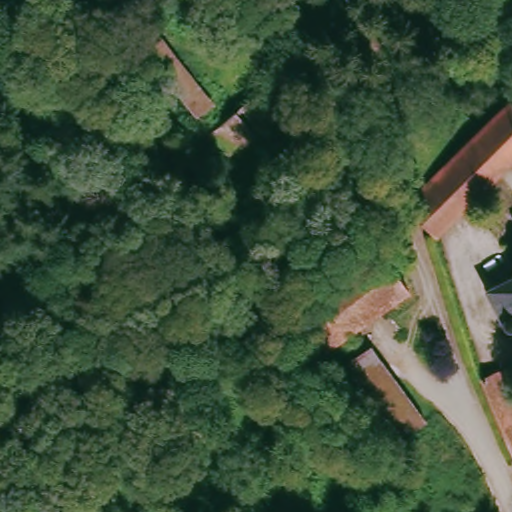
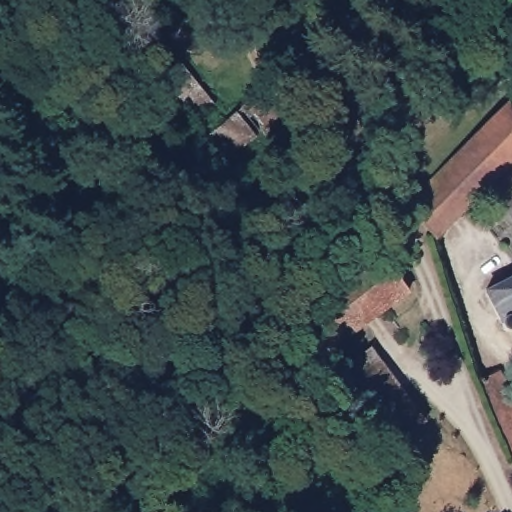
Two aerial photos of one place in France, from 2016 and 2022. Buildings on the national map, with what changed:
unchanged [(252,184),(208,123),(266,82),(306,141),(252,184)]
unchanged [(512,164),(439,238),(410,209),(475,142),(512,104),(512,164)]
unchanged [(377,253),(405,290),(326,353),(317,342),(297,316),(377,253)]
unchanged [(485,282),(512,268),(512,327),(503,322),(485,282)]
unchanged [(421,406),(387,430),(341,370),(373,342),(421,406)]
unchanged [(496,366),(512,400),(512,456),(476,378),(496,366)]

